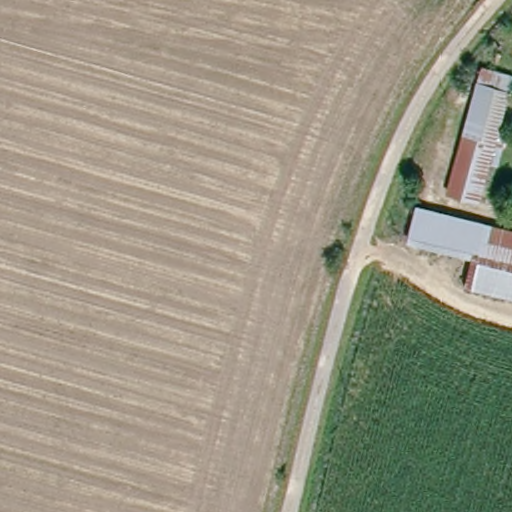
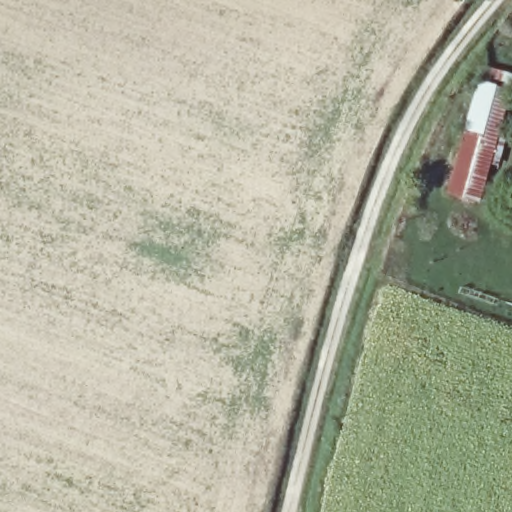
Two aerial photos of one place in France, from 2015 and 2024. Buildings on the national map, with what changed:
unchanged [(453,185),(482,86),(485,77),(512,86),(512,94),(512,96),(482,194),(453,185)]
demolished [(475,289),(479,261),(409,243),(420,206),(512,229),(512,298),(475,289)]

